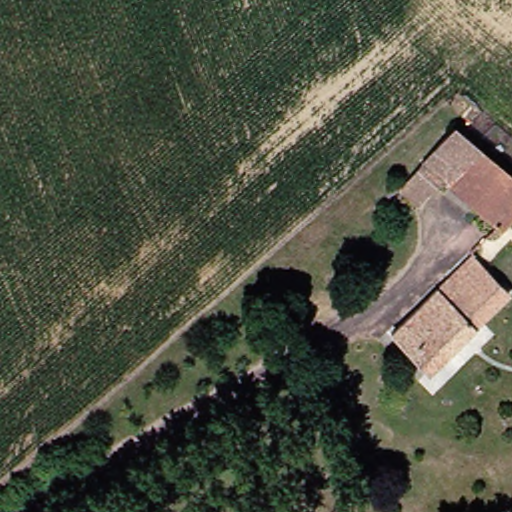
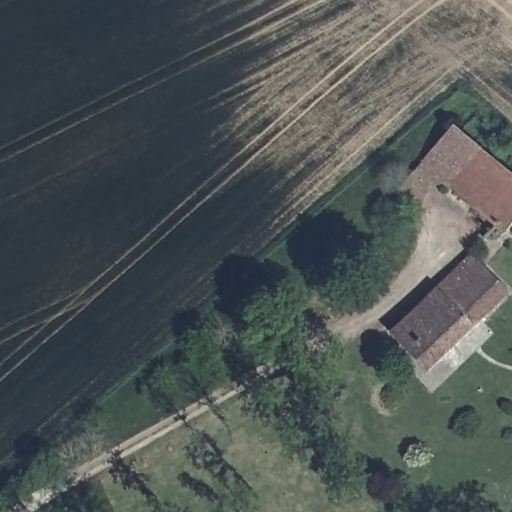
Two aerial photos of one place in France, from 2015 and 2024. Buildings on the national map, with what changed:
unchanged [(432,180),(410,205),(390,190),(412,160),(443,122),(512,179),(512,197),(490,225),(432,180)]
unchanged [(380,328),(461,251),(481,271),(499,291),(475,316),(420,368),(380,328)]

